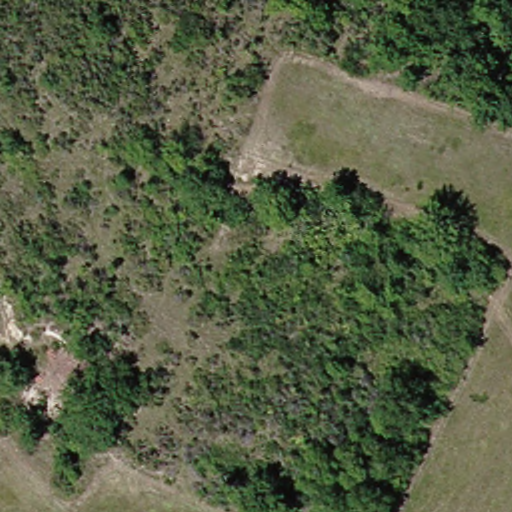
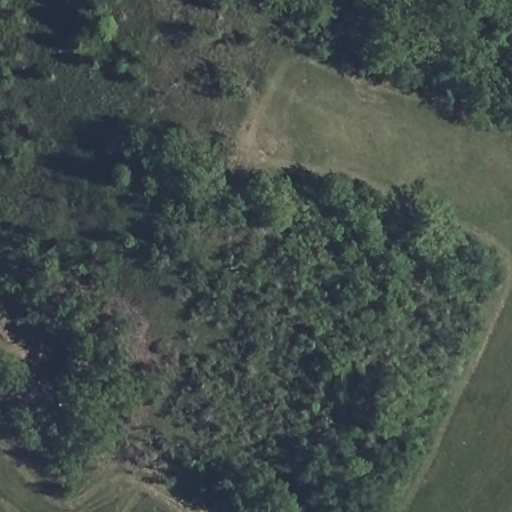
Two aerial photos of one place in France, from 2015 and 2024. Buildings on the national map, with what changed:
unchanged [(63,351),(76,332),(106,352),(94,373),(79,363),(77,368),(59,357),(63,351)]

